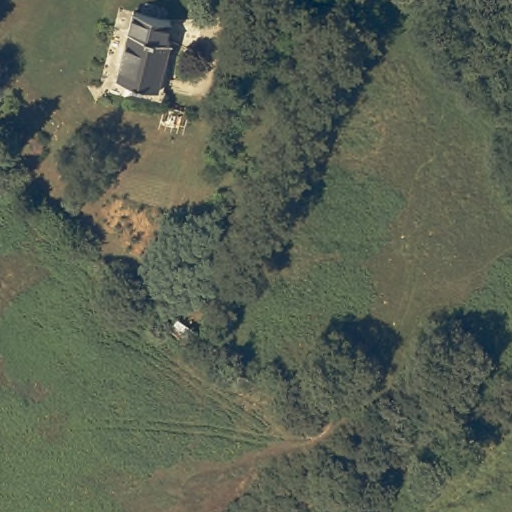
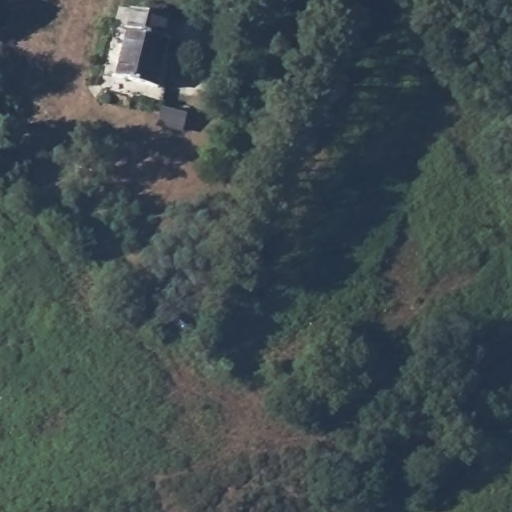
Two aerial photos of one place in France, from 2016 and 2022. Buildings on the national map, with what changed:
unchanged [(174,32),(156,98),(115,88),(132,22),(174,32)]

